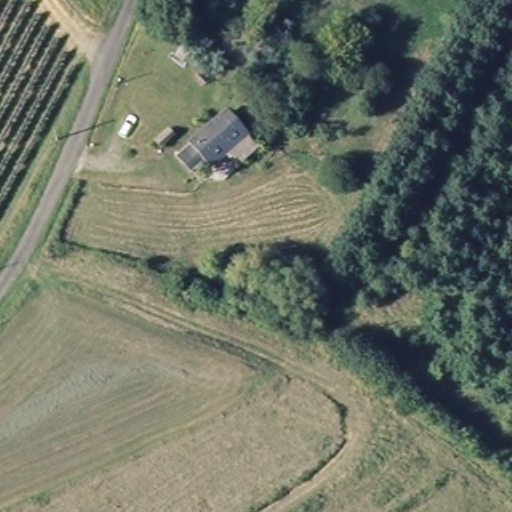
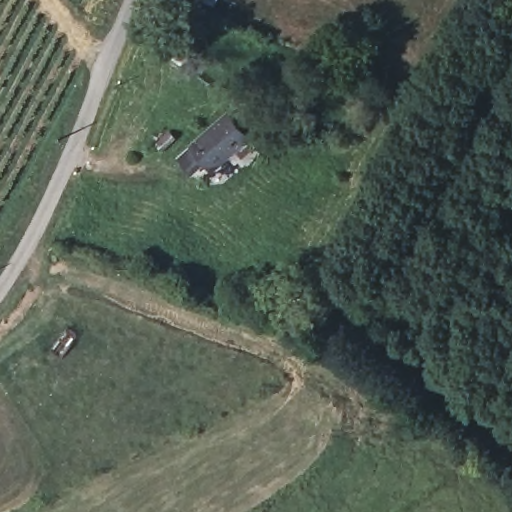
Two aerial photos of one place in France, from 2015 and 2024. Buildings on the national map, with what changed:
unchanged [(224,117),(246,138),(209,172),(203,165),(190,175),(177,160),(189,149),(224,117)]

